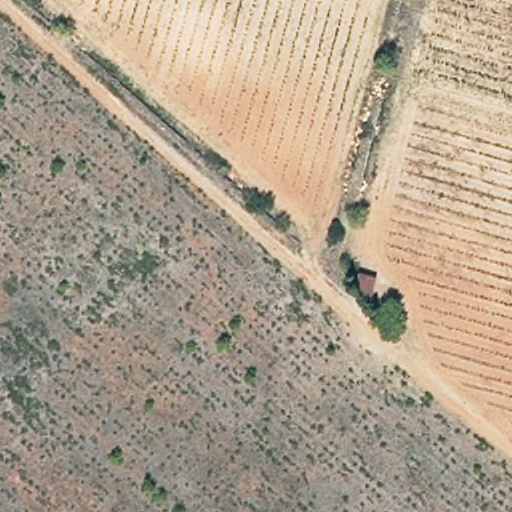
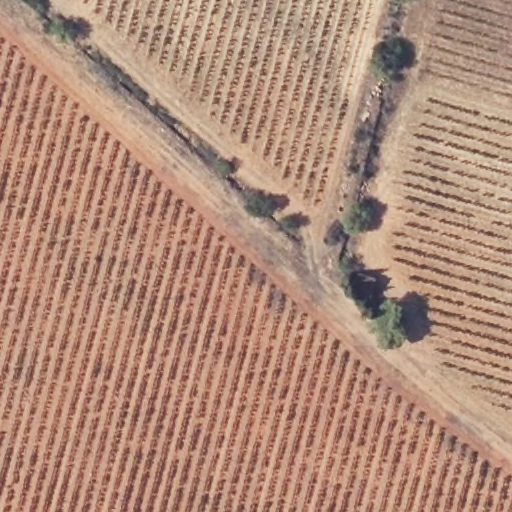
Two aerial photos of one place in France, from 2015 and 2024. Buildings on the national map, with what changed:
unchanged [(377,271),(373,295),(350,288),(355,265),(377,271)]

